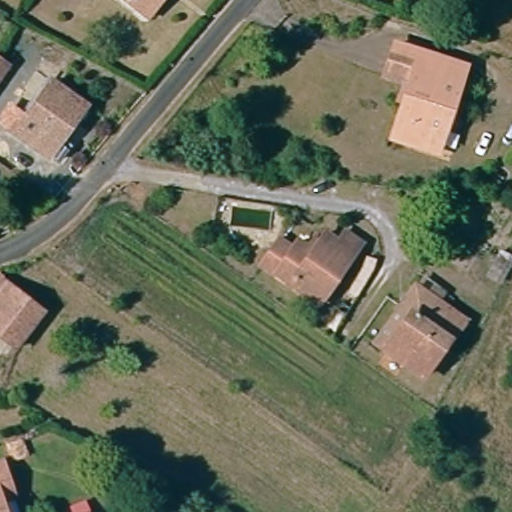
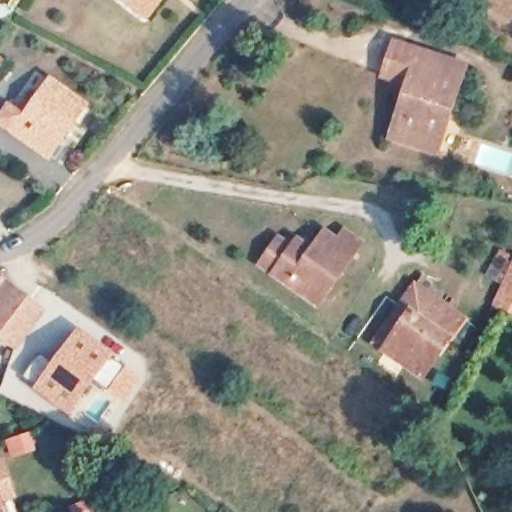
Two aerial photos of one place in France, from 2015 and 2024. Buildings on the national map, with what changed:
unchanged [(116,0),(166,0),(146,25),(141,21),(116,0)]
unchanged [(395,138),(409,84),(387,76),(396,45),(467,65),(440,151),(395,138)]
unchanged [(13,74),(0,91),(0,65),(13,74)]
unchanged [(42,157),(14,136),(4,129),(13,115),(24,123),(50,84),(83,109),(73,123),(47,160),(42,157)]
unchanged [(310,307),(263,276),(281,249),(295,259),(300,253),(315,263),(327,244),(339,253),(347,241),(364,253),(345,282),(322,315),(310,307)]
new [(512,314),(494,305),(503,285),(487,277),(502,249),(512,254),(512,314)]
unchanged [(44,317),(16,351),(0,339),(0,283),(44,317)]
unchanged [(461,324),(420,381),(387,358),(378,351),(403,317),(419,295),(461,324)]
new [(36,389),(80,329),(116,354),(71,414),(36,389)]
unchanged [(5,466),(10,482),(13,493),(15,498),(3,503),(6,512),(0,512),(0,467),(5,466)]

